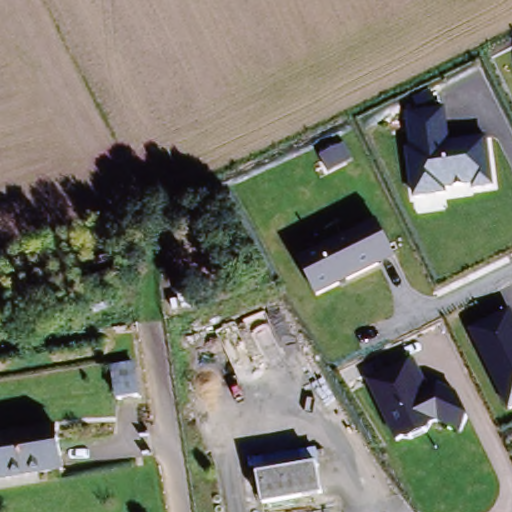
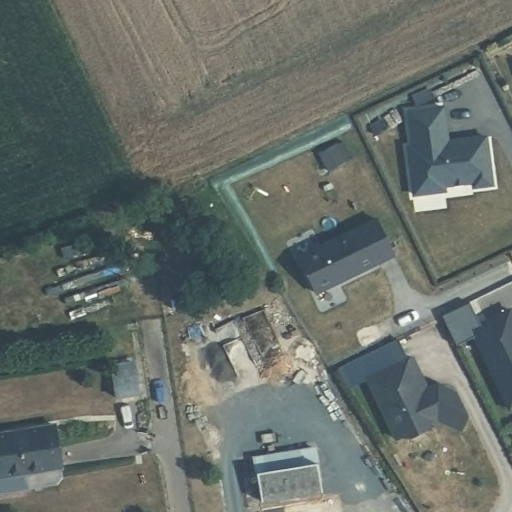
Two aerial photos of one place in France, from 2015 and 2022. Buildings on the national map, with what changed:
unchanged [(443,106),(447,139),(486,135),(493,189),(470,190),(470,186),(444,190),(445,194),(410,198),(404,146),(409,146),(405,110),(443,106)]
unchanged [(315,295),(295,256),(375,219),(395,258),(315,295)]
unchanged [(466,330),(509,308),(512,314),(512,411),(507,413),(466,330)]
unchanged [(412,356),(427,386),(436,383),(453,390),(467,417),(460,435),(436,424),(431,426),(426,432),(410,440),(401,438),(395,441),(364,380),(412,356)]
unchanged [(55,420),(63,461),(0,475),(0,432),(55,420)]
unchanged [(258,474),(317,467),(320,493),(261,500),(258,474)]

